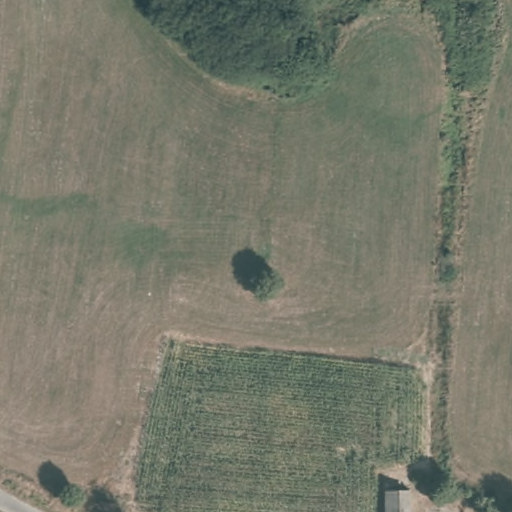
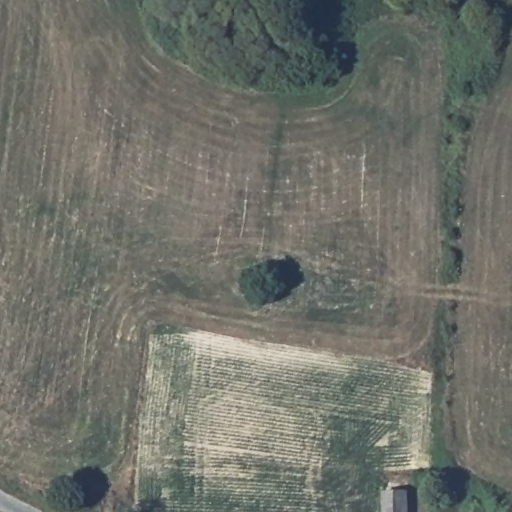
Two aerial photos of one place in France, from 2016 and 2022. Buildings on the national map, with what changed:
unchanged [(384,496),(409,495),(409,512),(384,512),(384,496)]

